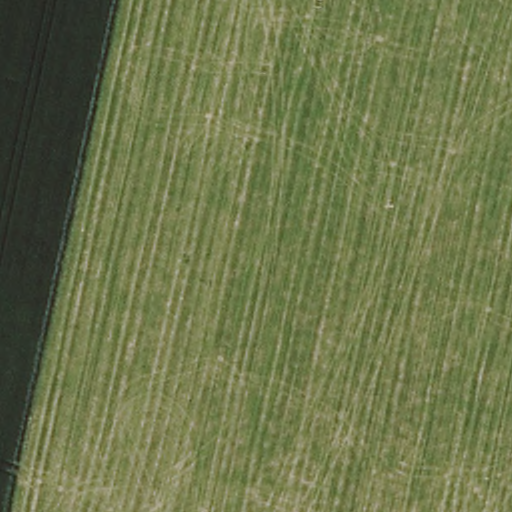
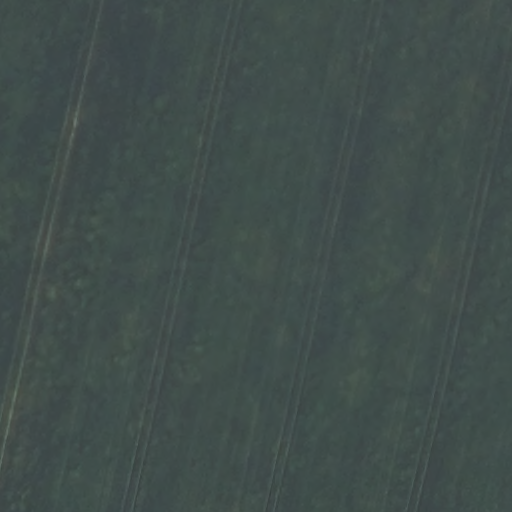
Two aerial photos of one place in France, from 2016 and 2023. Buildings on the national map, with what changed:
[]

